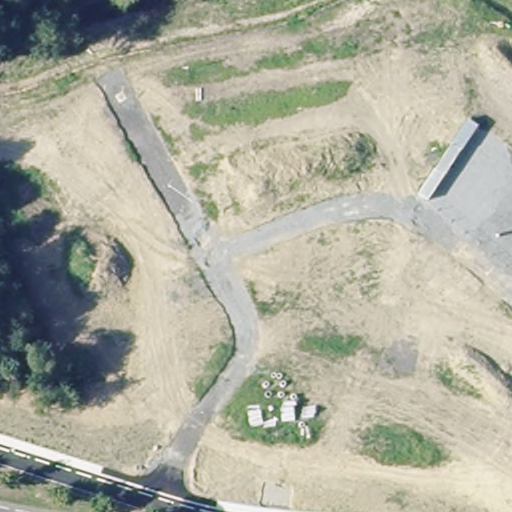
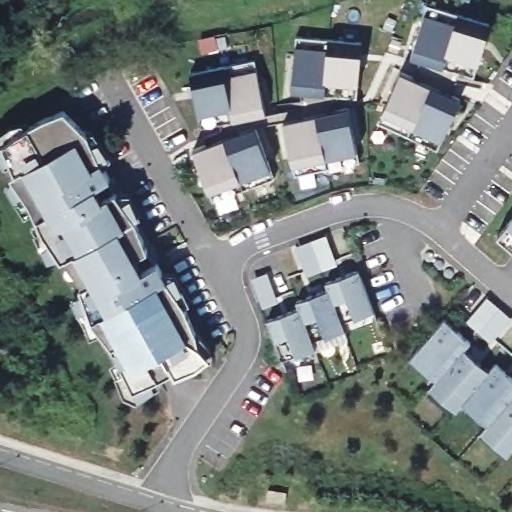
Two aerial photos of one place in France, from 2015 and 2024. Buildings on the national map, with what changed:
new [(421,6),(484,25),(467,79),(405,59),(421,6)]
new [(290,38),(356,44),(350,99),(285,93),(290,38)]
new [(249,62),(260,116),(195,129),(184,75),(249,62)]
new [(395,73),(455,100),(431,151),(371,124),(395,73)]
new [(341,109),(353,164),(288,177),(277,123),(341,109)]
new [(36,234),(22,204),(4,177),(9,174),(0,154),(0,141),(12,132),(37,118),(58,110),(81,134),(95,161),(104,179),(102,180),(107,194),(110,193),(129,220),(141,251),(139,252),(149,264),(150,264),(159,279),(178,307),(190,334),(195,354),(176,367),(152,381),(126,392),(104,347),(85,322),(73,288),(76,287),(58,260),(55,262),(36,234)]
new [(249,128),(268,180),(206,203),(187,151),(249,128)]
unchanged [(512,213),(512,256),(490,237),(512,213)]
new [(322,242),(329,261),(298,272),(291,254),(322,242)]
new [(293,309),(290,303),(322,291),(320,284),(352,272),(368,313),(336,325),(339,332),(307,344),(310,351),(276,363),(261,322),(293,309)]
new [(477,303),(502,325),(489,340),(464,318),(477,303)]
new [(438,320),(465,344),(458,351),(483,373),(490,366),(512,385),(512,393),(509,396),(512,399),(512,444),(500,458),(474,435),(480,427),(455,406),(449,413),(422,390),(429,383),(403,360),(438,320)]

